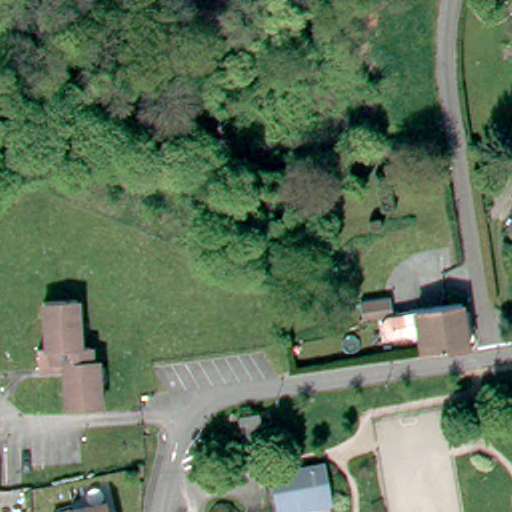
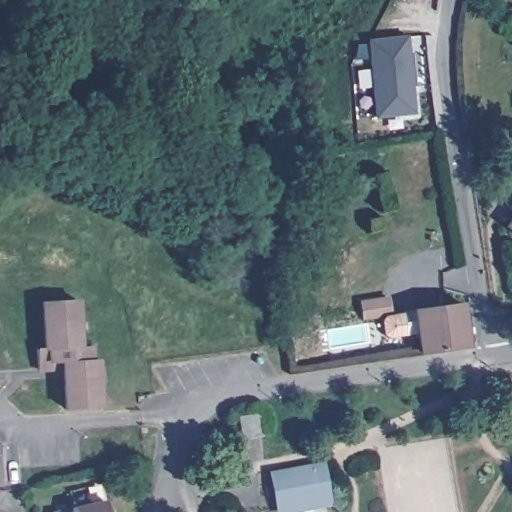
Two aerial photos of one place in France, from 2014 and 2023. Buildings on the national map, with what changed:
new [(407,37),(412,88),(410,88),(410,93),(412,93),(415,113),(376,118),(368,41),(407,37)]
unchanged [(512,132),(512,135),(510,144),(497,140),(501,129),(512,132)]
unchanged [(512,217),(512,225),(508,222),(512,217)]
unchanged [(426,310),(424,300),(459,295),(461,312),(469,311),(471,322),(462,324),(466,348),(436,352),(423,354),(418,311),(426,310)]
unchanged [(397,297),(401,315),(365,321),(362,302),(397,297)]
unchanged [(39,370),(37,350),(45,350),(42,302),(75,300),(77,323),(72,324),(72,347),(89,347),(92,384),(97,385),(100,409),(66,410),(63,369),(52,370),(39,370)]
unchanged [(262,418),(264,436),(246,438),(243,420),(262,418)]
unchanged [(331,470),(336,512),(333,512),(277,512),(274,479),(331,470)]
unchanged [(53,512),(53,511),(71,507),(105,499),(108,512),(53,512)]

